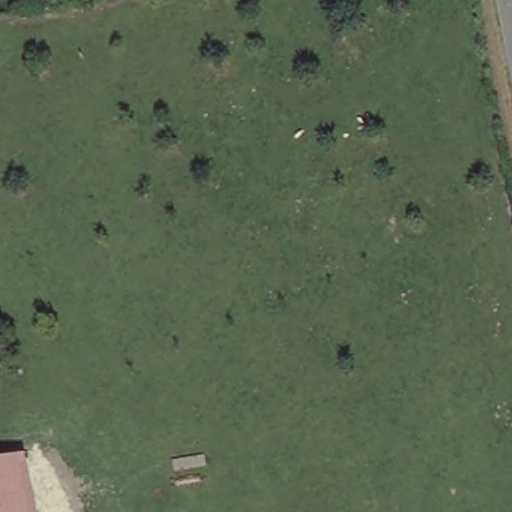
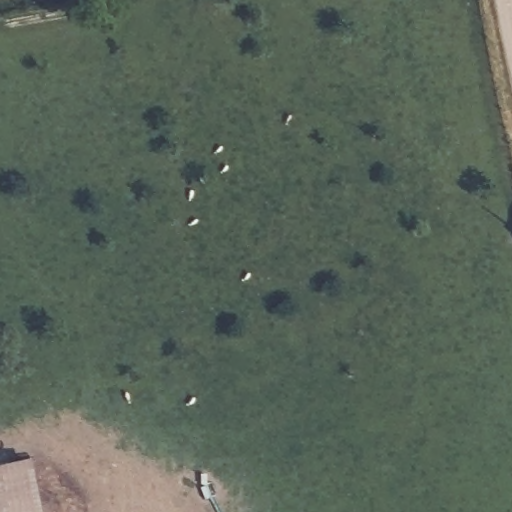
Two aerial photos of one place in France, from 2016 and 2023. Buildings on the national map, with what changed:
unchanged [(37,512),(0,512),(0,465),(27,460),(37,512)]

